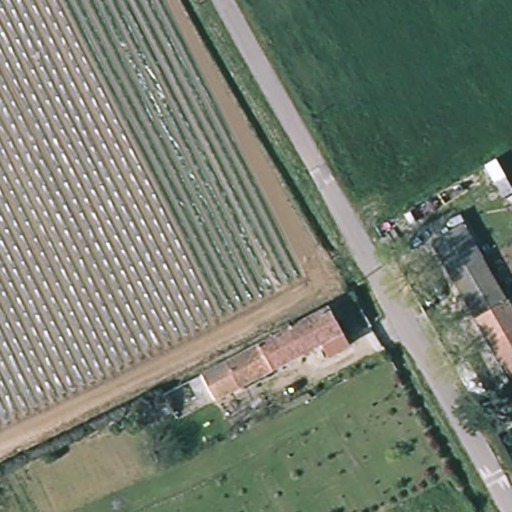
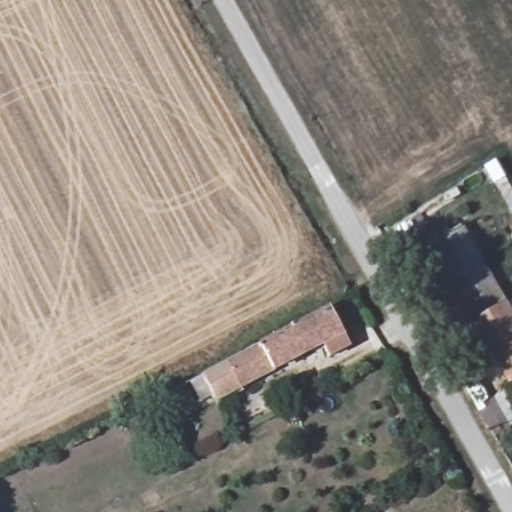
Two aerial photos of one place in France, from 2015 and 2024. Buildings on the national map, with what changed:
unchanged [(464,230),(486,268),(456,285),(434,249),(438,246),(464,230)]
unchanged [(509,307),(480,325),(456,285),(486,268),(509,307)]
unchanged [(352,346),(331,357),(322,340),(218,397),(206,371),(330,306),(352,346)]
unchanged [(512,378),(480,325),(509,307),(512,312),(512,378)]
unchanged [(189,441),(213,428),(221,443),(195,457),(189,441)]

